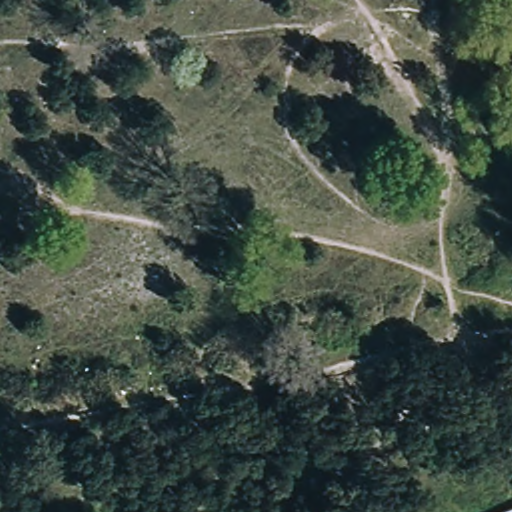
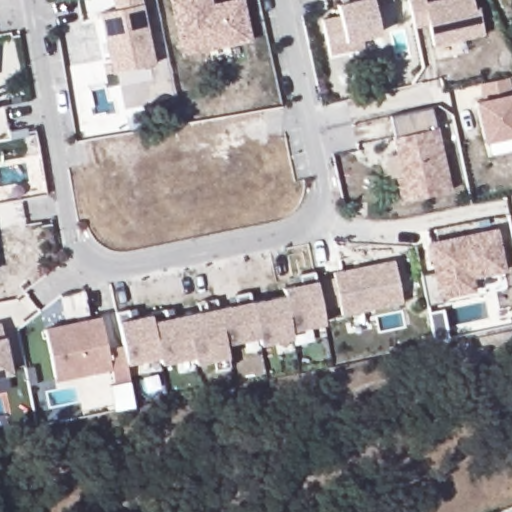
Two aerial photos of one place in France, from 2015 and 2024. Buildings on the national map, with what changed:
new [(112,9),(111,0),(142,0),(142,3),(155,64),(111,73),(99,12),(112,9)]
new [(212,4),(229,0),(244,0),(253,41),(180,57),(169,0),(212,0),(212,4)]
new [(373,7),(380,33),(361,38),(363,49),(329,55),(322,21),(340,15),(337,3),(352,0),(393,0),(393,2),(373,7)]
new [(475,9),(480,13),(483,35),(433,45),(429,24),(415,28),(408,0),(425,0),(426,3),(439,0),(473,0),(475,9)]
new [(484,143),(474,99),(483,97),(477,84),(508,77),(512,88),(512,137),(484,143)]
new [(400,202),(394,179),(400,178),(390,119),(431,110),(435,127),(438,126),(452,192),(400,202)]
new [(435,272),(430,244),(495,230),(503,270),(471,277),(473,290),(441,296),(442,303),(427,306),(420,275),(435,272)]
new [(402,303),(342,317),(332,273),(392,260),(402,303)]
new [(290,329),(292,337),(260,343),(258,336),(225,343),(230,367),(215,370),(212,359),(195,361),(194,357),(161,363),(150,316),(150,312),(171,306),(173,318),(199,314),(197,304),(215,301),(218,309),(228,307),(227,297),(249,293),(252,305),(284,298),(287,307),(293,306),(290,289),(293,288),(291,277),(315,273),(324,323),(290,329)]
new [(130,319),(150,315),(160,355),(126,362),(115,312),(128,309),(130,319)]
new [(107,349),(121,345),(130,381),(113,386),(109,370),(57,382),(43,329),(98,317),(107,349)]
new [(11,376),(0,377),(0,324),(5,338),(11,376)]

